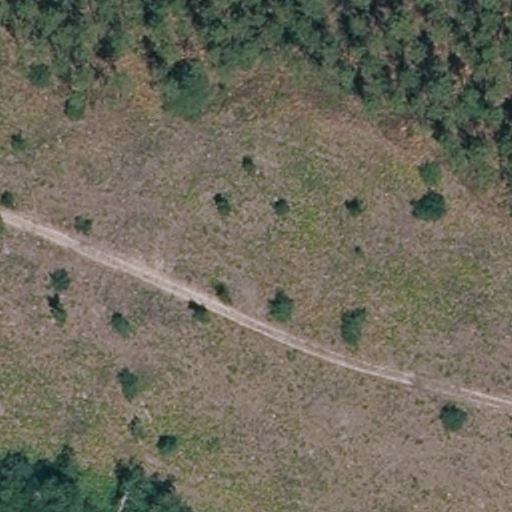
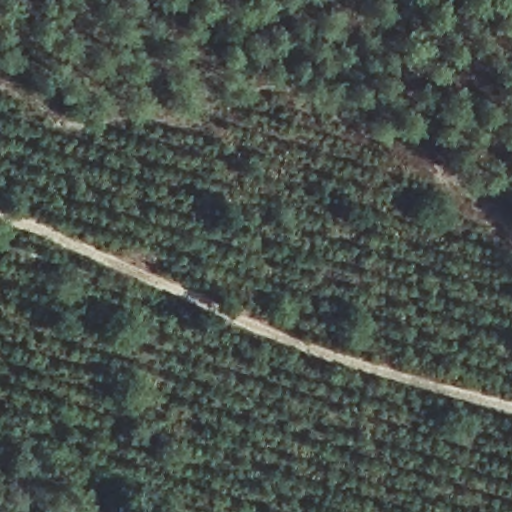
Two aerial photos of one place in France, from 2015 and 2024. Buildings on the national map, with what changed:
[]

